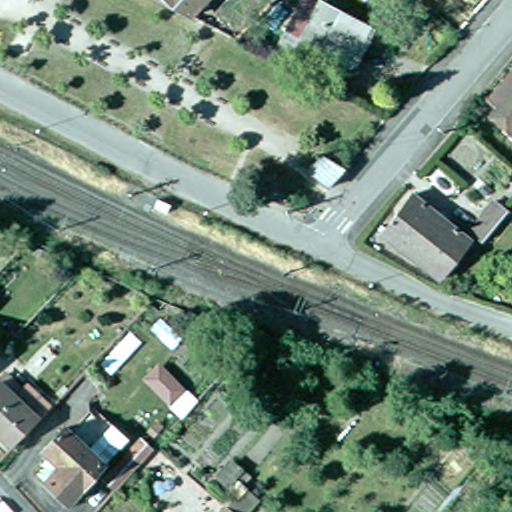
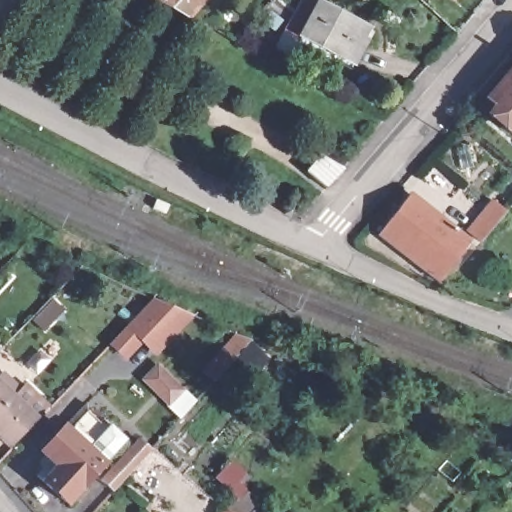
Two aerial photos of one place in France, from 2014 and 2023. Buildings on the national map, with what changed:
unchanged [(151,0),(198,0),(182,16),(151,0)]
unchanged [(306,0),(322,0),(326,0),(370,22),(352,56),(305,31),(293,25),(306,0)]
unchanged [(495,101),(485,93),(512,63),(512,131),(487,109),(495,101)]
unchanged [(305,171),(321,153),(340,170),(324,188),(305,171)]
unchanged [(375,228),(405,190),(464,238),(434,275),(375,228)]
unchanged [(463,227),(488,197),(500,207),(475,237),(463,227)]
new [(143,344),(125,361),(109,345),(152,299),(197,317),(157,357),(143,344)]
unchanged [(210,382),(200,374),(218,353),(220,356),(237,336),(248,340),(210,382)]
new [(186,388),(199,402),(182,418),(170,405),(142,380),(158,362),(186,388)]
unchanged [(11,386),(4,392),(5,394),(18,381),(42,405),(30,417),(3,445),(0,442),(0,375),(11,386)]
unchanged [(17,457),(42,432),(50,422),(61,412),(66,417),(77,428),(80,424),(104,446),(90,460),(44,510),(19,486),(12,479),(25,466),(17,457)]
unchanged [(97,467),(115,449),(125,458),(107,477),(89,498),(78,487),(97,467)]
unchanged [(222,509),(225,512),(219,512),(222,509)]

